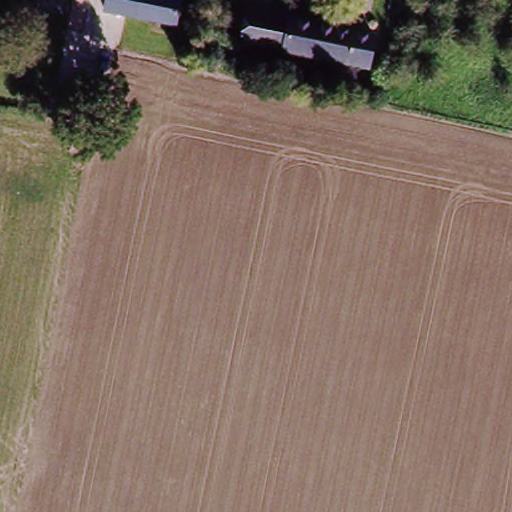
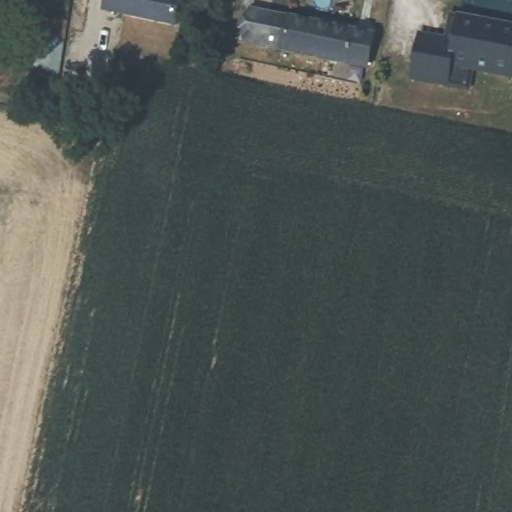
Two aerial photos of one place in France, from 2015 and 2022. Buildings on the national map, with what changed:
unchanged [(139,21),(106,16),(109,0),(166,0),(180,3),(176,29),(139,21)]
unchanged [(241,43),(245,11),(286,18),(282,51),(241,43)]
new [(421,34),(456,40),(460,15),(512,23),(512,74),(453,65),(450,85),(413,78),(421,34)]
unchanged [(367,66),(345,61),(282,51),(286,18),(350,29),(373,33),(367,66)]
unchanged [(107,94),(102,119),(72,114),(76,89),(107,94)]

